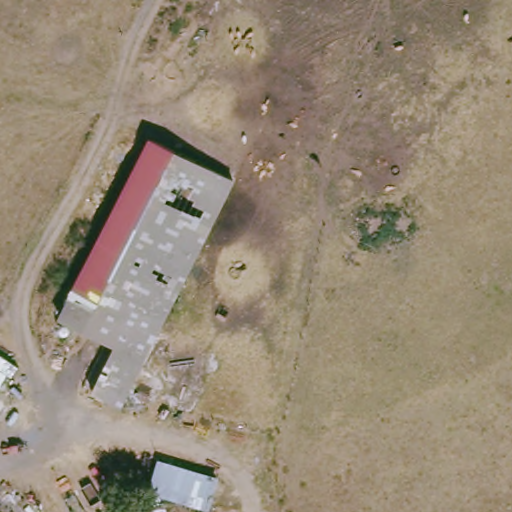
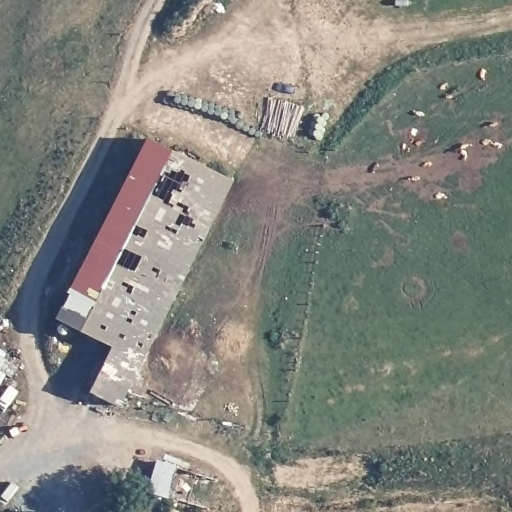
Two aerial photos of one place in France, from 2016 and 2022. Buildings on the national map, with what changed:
unchanged [(150,137),(233,179),(120,406),(92,391),(115,346),(60,318),(150,137)]
unchanged [(0,383),(0,371),(5,375),(0,383)]
unchanged [(149,491),(160,462),(217,480),(209,509),(149,491)]

